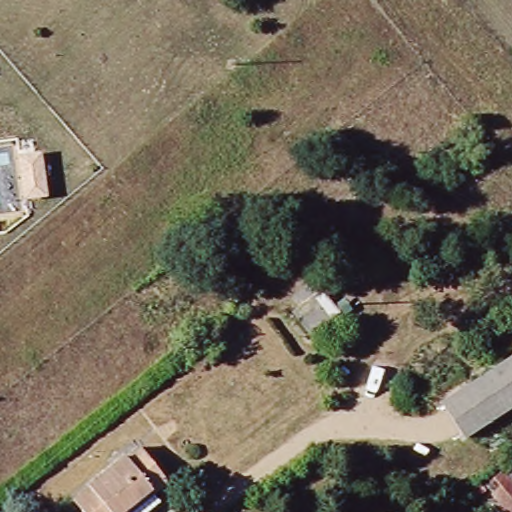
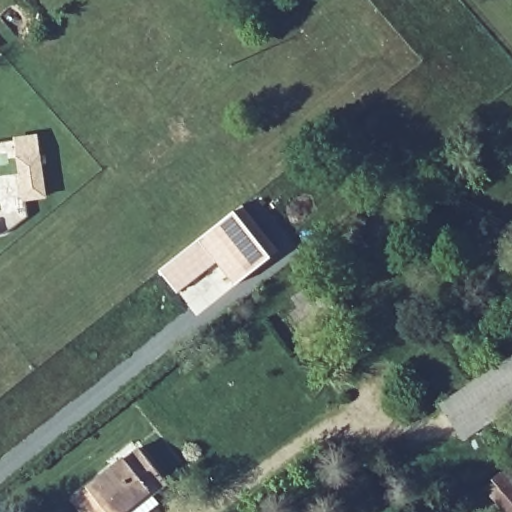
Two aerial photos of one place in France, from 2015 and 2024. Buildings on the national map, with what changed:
new [(43,154),(49,196),(28,199),(21,156),(43,154)]
demolished [(0,207),(0,192),(2,207),(0,207)]
new [(279,250),(272,256),(235,285),(218,262),(178,292),(160,269),(235,211),(242,204),(279,250)]
unchanged [(302,327),(314,317),(309,309),(303,314),(296,306),(310,295),(317,304),(323,299),(338,319),(311,340),(302,327)]
unchanged [(462,441),(438,404),(512,356),(512,408),(462,441)]
unchanged [(71,499),(139,449),(166,485),(152,496),(159,504),(149,512),(81,512),(71,499)]
unchanged [(495,489),(510,476),(512,478),(512,508),(495,489)]

